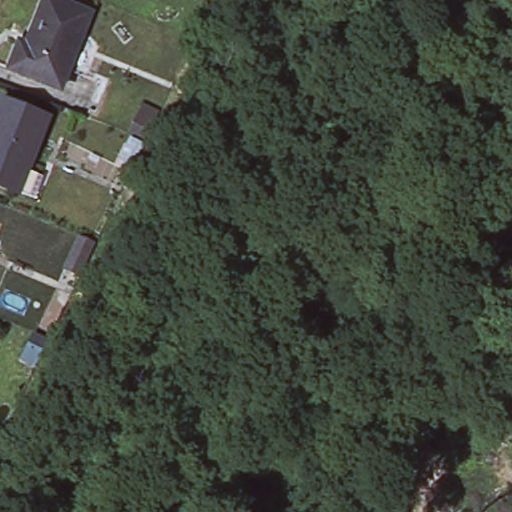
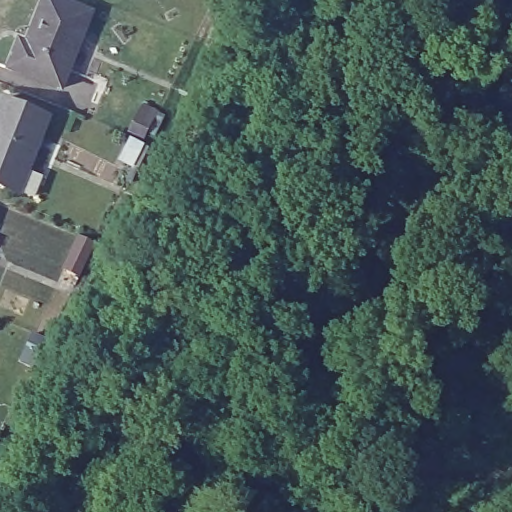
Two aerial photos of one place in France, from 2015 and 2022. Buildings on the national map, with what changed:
unchanged [(59,86),(10,67),(20,42),(27,44),(44,0),(60,0),(90,11),(59,86)]
unchanged [(0,183),(0,104),(2,98),(47,116),(25,169),(17,190),(10,187),(0,183)]

